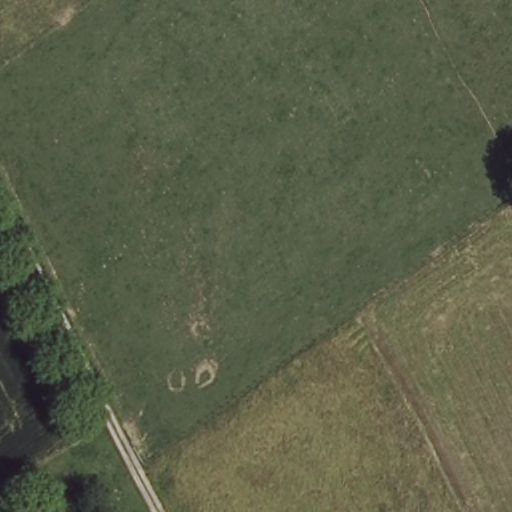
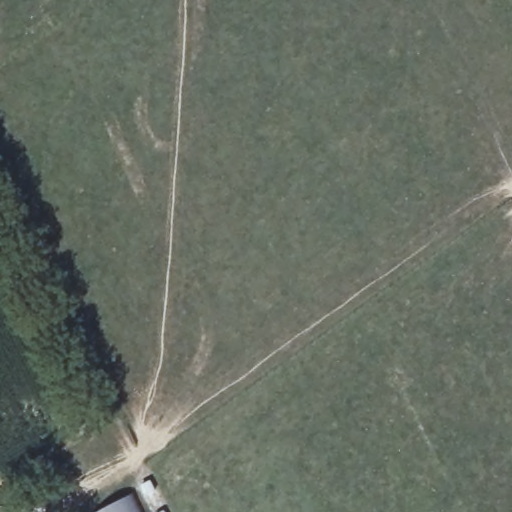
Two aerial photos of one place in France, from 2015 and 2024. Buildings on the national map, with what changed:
new [(143,512),(96,512),(134,493),(143,512)]

